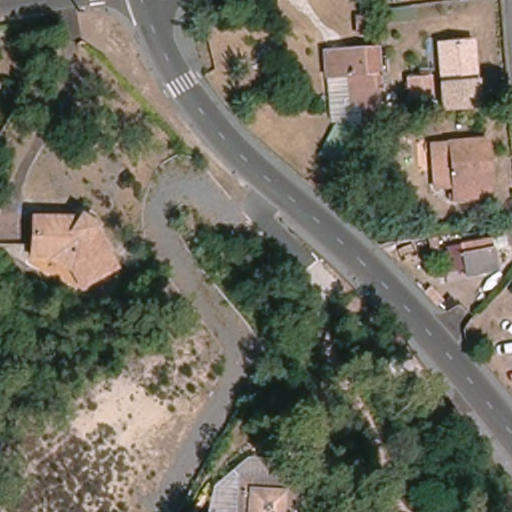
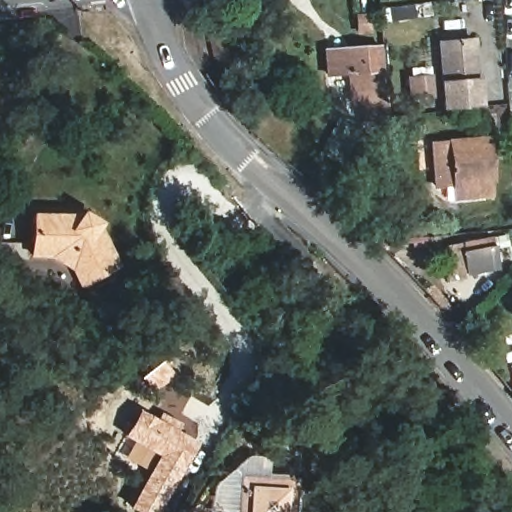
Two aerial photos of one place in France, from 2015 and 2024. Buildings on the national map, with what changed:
unchanged [(446,112),(439,45),(473,42),(481,108),(446,112)]
unchanged [(326,76),(323,49),(387,48),(386,104),(352,106),(350,76),(326,76)]
unchanged [(345,120),(328,122),(326,76),(350,76),(352,106),(386,104),(391,122),(362,126),(338,165),(329,159),(345,120)]
unchanged [(491,182),(488,183),(490,197),(456,200),(454,186),(437,187),(433,144),(487,139),(491,182)]
unchanged [(89,286),(80,270),(57,257),(39,256),(40,217),(85,218),(87,214),(104,224),(101,228),(124,267),(89,286)]
unchanged [(498,268),(467,274),(461,243),(492,237),(498,268)]
new [(131,512),(127,511),(157,457),(122,437),(137,411),(195,443),(158,512),(131,512)]
unchanged [(275,476),(288,491),(288,512),(249,512),(249,511),(242,506),(240,505),(239,509),(225,507),(212,497),(217,481),(251,452),(261,454),(260,466),(275,476)]

